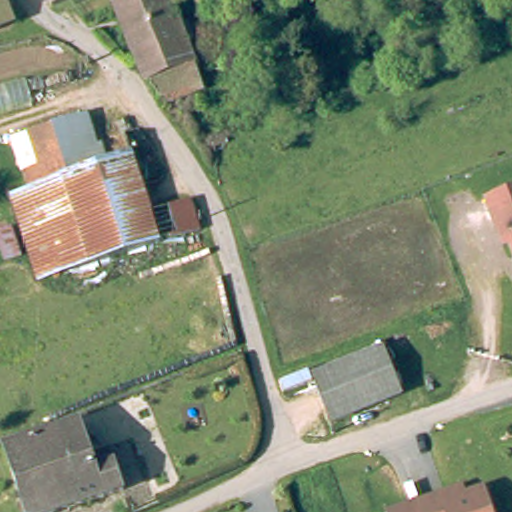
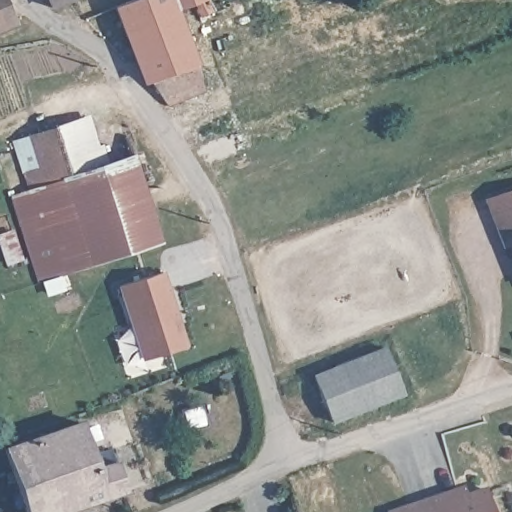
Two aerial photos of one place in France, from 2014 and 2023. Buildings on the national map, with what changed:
unchanged [(0,29),(0,0),(5,0),(15,22),(0,29)]
unchanged [(59,12),(54,0),(79,0),(81,5),(59,12)]
unchanged [(191,44),(193,48),(148,65),(145,66),(121,7),(129,4),(138,0),(214,0),(218,10),(207,15),(200,1),(178,10),(185,29),(194,25),(200,41),(191,44)]
unchanged [(193,48),(211,91),(173,105),(155,82),(148,65),(193,48)]
unchanged [(95,116),(111,166),(77,176),(61,129),(95,116)]
unchanged [(203,233),(47,282),(20,195),(38,190),(22,141),(61,129),(77,176),(111,166),(139,157),(157,215),(193,202),(203,233)]
unchanged [(507,242),(501,245),(484,200),(512,189),(512,255),(507,242)]
new [(164,270),(188,346),(142,360),(120,285),(164,270)]
unchanged [(405,394),(333,422),(316,377),(386,349),(405,394)]
unchanged [(85,425),(94,455),(112,450),(127,490),(64,512),(28,512),(7,450),(85,425)]
unchanged [(445,492),(465,485),(468,493),(486,487),(495,512),(393,512),(392,509),(413,502),(443,492),(445,492)]

